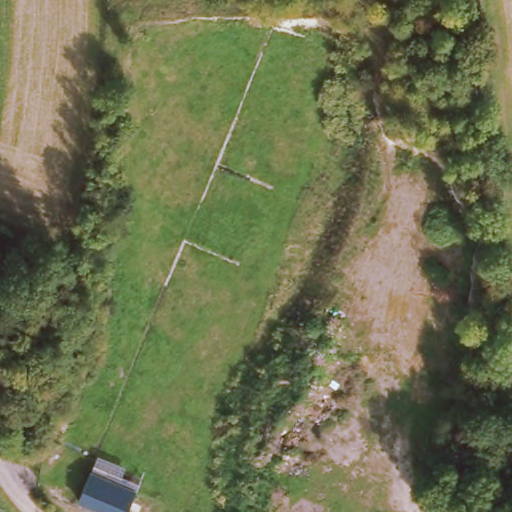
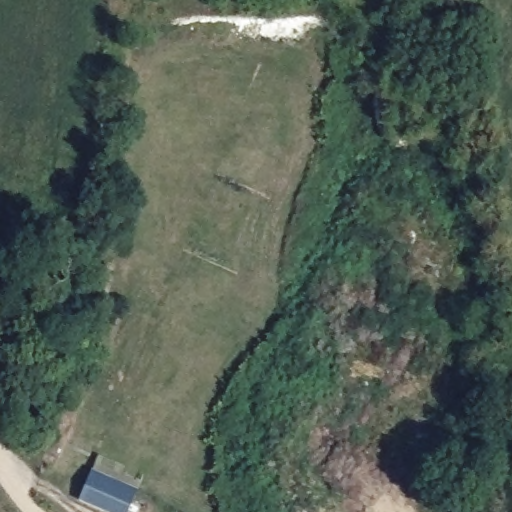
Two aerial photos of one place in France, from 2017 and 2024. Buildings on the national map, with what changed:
unchanged [(135,489),(126,512),(103,512),(77,501),(90,470),(135,489)]

